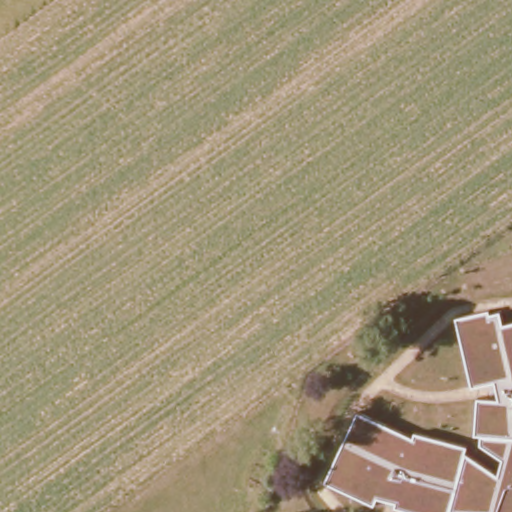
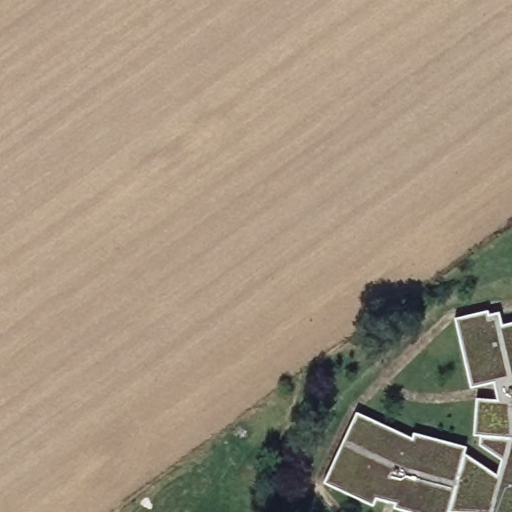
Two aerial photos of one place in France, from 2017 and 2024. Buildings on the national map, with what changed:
unchanged [(449,512),(423,512),(395,503),(395,501),(377,497),(374,504),(324,481),(357,409),(412,435),(414,430),(467,444),(465,450),(498,472),(501,457),(480,443),(480,433),(474,433),(476,395),(497,397),(494,380),(471,386),(455,316),(488,307),(490,311),(500,309),(502,322),(512,320),(512,512),(487,512),(450,510),(449,512)]

